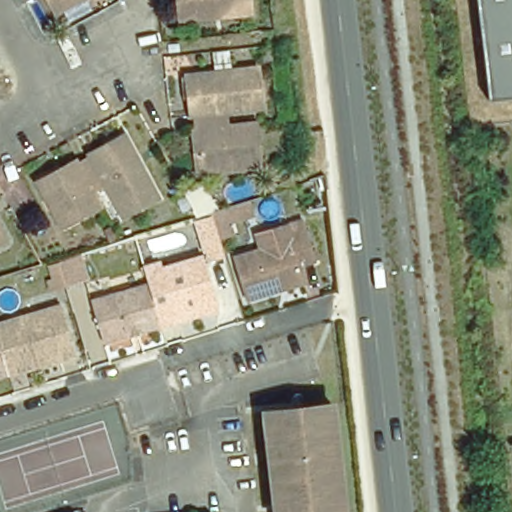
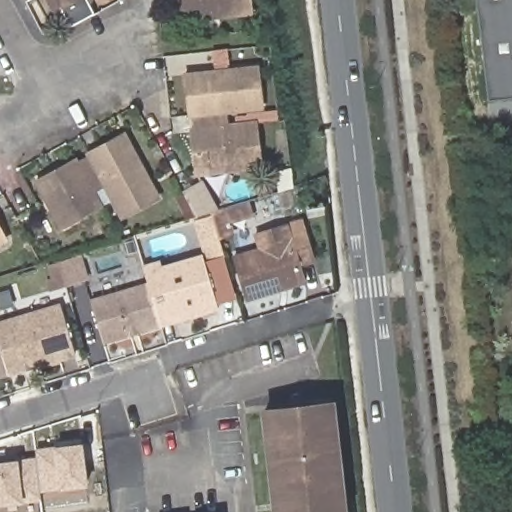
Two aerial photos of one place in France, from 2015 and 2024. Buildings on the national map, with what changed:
unchanged [(18,9),(13,0),(36,0),(18,9)]
unchanged [(61,27),(56,18),(49,22),(39,2),(37,0),(87,0),(79,4),(85,14),(61,27)]
unchanged [(171,5),(171,0),(243,0),(245,17),(180,23),(172,24),(171,5)]
unchanged [(482,0),(512,0),(512,99),(493,101),(482,0)]
unchanged [(187,116),(183,116),(181,98),(179,75),(186,74),(210,71),(209,55),(221,54),(223,70),(252,68),(256,108),(221,111),(222,127),(250,124),(254,170),(189,176),(187,153),(185,132),(189,132),(187,116)]
unchanged [(254,55),(266,54),(267,62),(255,63),(254,55)]
unchanged [(117,225),(99,193),(87,199),(96,213),(56,236),(29,188),(48,178),(67,168),(70,173),(83,165),(81,160),(102,148),(117,140),(121,148),(152,206),(117,225)]
unchanged [(288,166),(288,167),(275,168),(273,148),(286,147),(288,166)]
unchanged [(239,198),(243,213),(216,221),(220,234),(208,237),(200,211),(191,214),(178,192),(195,182),(210,208),(212,207),(239,198)]
unchanged [(270,296),(237,306),(223,262),(282,245),(279,236),(292,231),(303,271),(291,275),(293,283),(295,289),(270,296)]
unchanged [(72,240),(82,272),(61,279),(52,247),(72,240)]
unchanged [(0,249),(0,244),(2,247),(0,249)]
unchanged [(149,278),(143,260),(159,255),(161,261),(202,248),(219,302),(161,320),(149,278)]
unchanged [(102,337),(90,295),(149,278),(161,320),(102,337)]
unchanged [(31,362),(28,358),(5,365),(0,351),(0,313),(57,295),(72,344),(54,350),(55,355),(31,362)]
unchanged [(5,365),(0,367),(0,351),(5,365)]
unchanged [(288,413),(297,412),(325,408),(337,512),(270,512),(260,416),(288,413)]
new [(82,443),(86,487),(39,491),(40,501),(0,504),(0,463),(38,456),(37,448),(82,443)]

